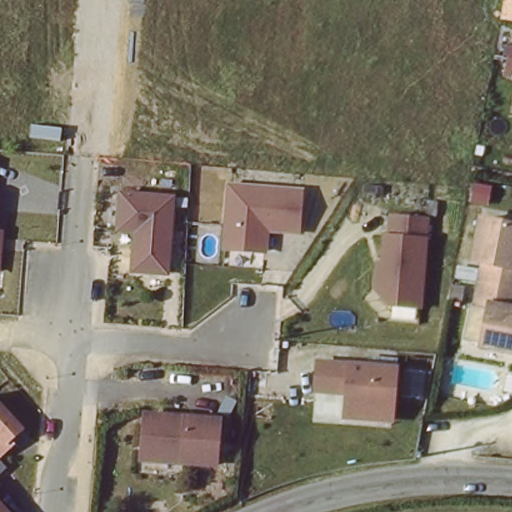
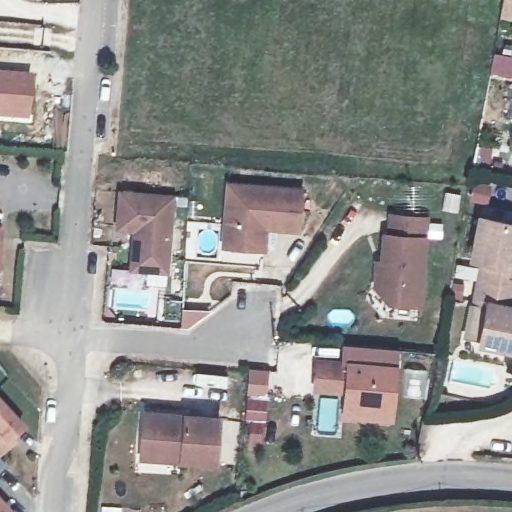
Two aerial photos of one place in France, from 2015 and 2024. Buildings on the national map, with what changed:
new [(35,72),(32,121),(0,119),(0,69),(35,72)]
unchanged [(297,194),(294,234),(262,231),(260,254),(220,251),(225,188),(297,194)]
unchanged [(132,255),(133,233),(115,232),(117,196),(170,198),(167,274),(142,273),(131,273),(132,255)]
unchanged [(423,221),(416,309),(387,306),(373,290),(375,265),(380,266),(382,238),(387,239),(389,219),(423,221)]
unchanged [(512,228),(512,311),(512,353),(479,347),(487,307),(485,307),(474,305),(478,284),(481,264),(470,262),(478,221),(500,225),(512,228)]
unchanged [(395,422),(338,420),(340,398),(310,395),(310,363),(393,369),(395,422)]
unchanged [(4,439),(12,445),(0,457),(0,413),(14,428),(4,439)]
unchanged [(144,450),(147,415),(222,419),(218,465),(186,463),(143,461),(144,450)]
unchanged [(3,468),(0,472),(0,465),(3,468)]
unchanged [(1,489),(0,490),(0,488),(1,489)]
unchanged [(5,512),(0,512),(0,507),(5,512)]

